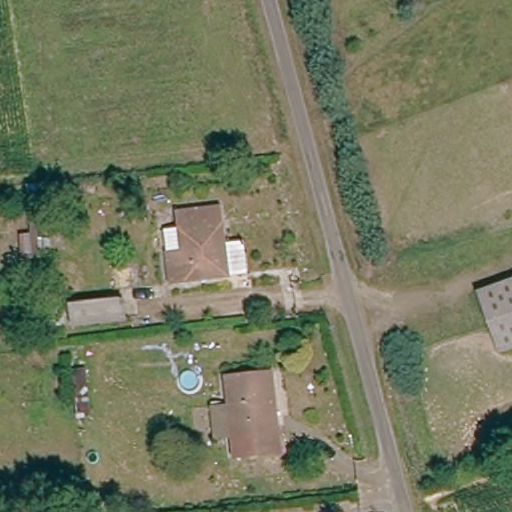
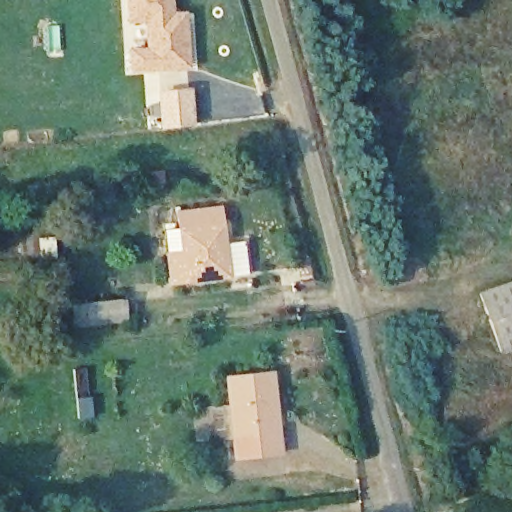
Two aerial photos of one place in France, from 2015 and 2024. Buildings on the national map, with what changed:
new [(145,48),(143,24),(126,25),(125,0),(173,0),(174,14),(186,12),(189,70),(130,75),(127,49),(145,48)]
new [(157,90),(192,87),(195,125),(160,129),(157,90)]
unchanged [(221,206),(227,245),(247,242),(252,277),(233,280),(177,286),(169,231),(184,229),(180,211),(221,206)]
unchanged [(512,357),(509,358),(483,300),(512,288),(512,357)]
unchanged [(124,301),(127,325),(78,328),(75,305),(124,301)]
unchanged [(276,373),(290,455),(242,460),(229,381),(276,373)]

